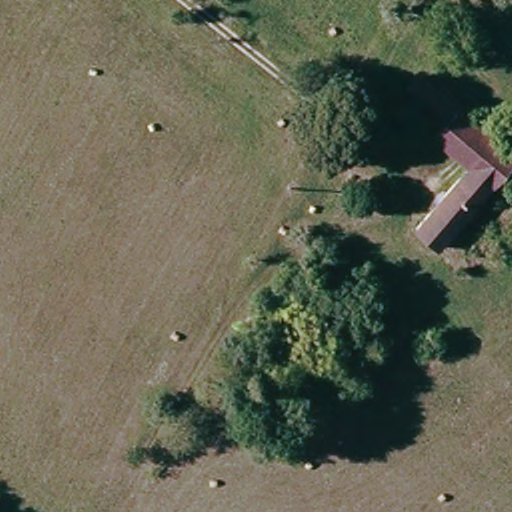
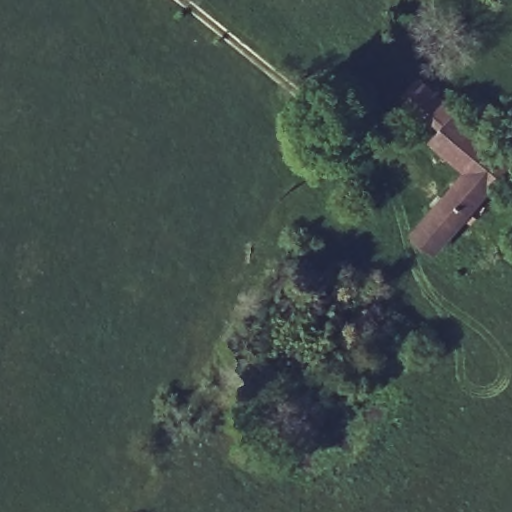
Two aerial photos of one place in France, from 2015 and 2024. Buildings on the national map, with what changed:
unchanged [(443,141),(454,128),(419,98),(440,75),(512,139),(512,179),(443,255),(419,234),(476,170),(443,141)]

